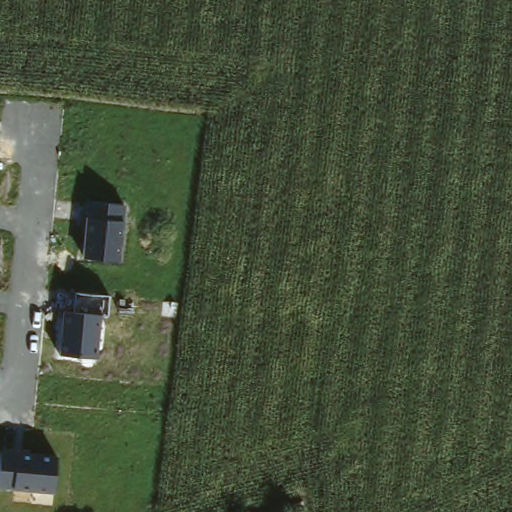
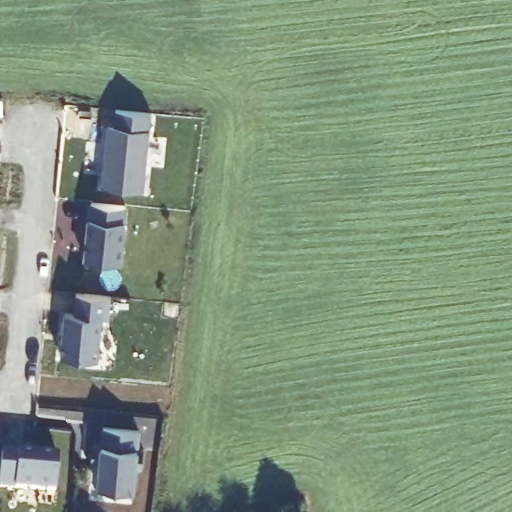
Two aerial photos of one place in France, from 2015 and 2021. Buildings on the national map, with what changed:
new [(107,124),(115,125),(117,109),(151,113),(149,129),(144,189),(102,184),(107,124)]
unchanged [(120,263),(82,260),(90,200),(126,204),(120,263)]
unchanged [(109,315),(102,314),(97,358),(59,354),(64,291),(110,296),(109,315)]
new [(101,444),(102,425),(139,429),(137,449),(145,449),(142,468),(136,468),(135,489),(97,486),(101,444)]
unchanged [(0,485),(0,479),(3,448),(57,454),(54,492),(0,485)]

